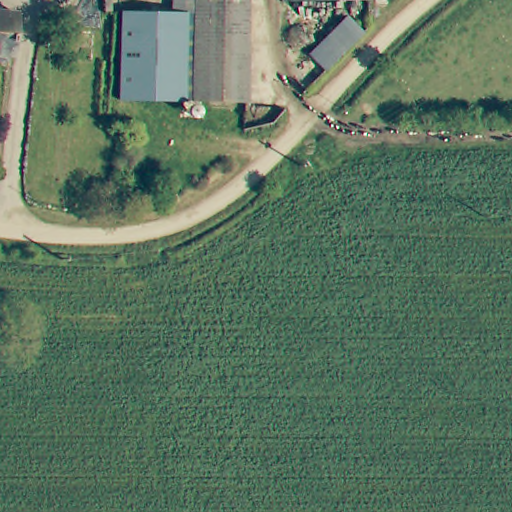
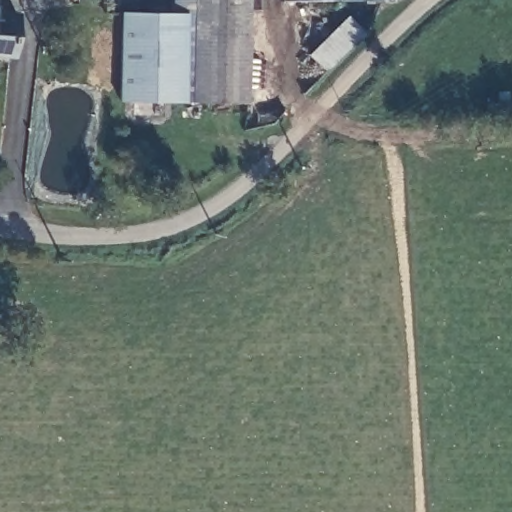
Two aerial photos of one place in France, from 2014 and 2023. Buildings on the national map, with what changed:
unchanged [(124,11),(160,12),(174,12),(174,0),(248,0),(248,101),(196,100),(185,99),(157,99),(121,98),(124,11)]
unchanged [(11,53),(5,52),(0,51),(0,7),(15,8),(11,53)]

